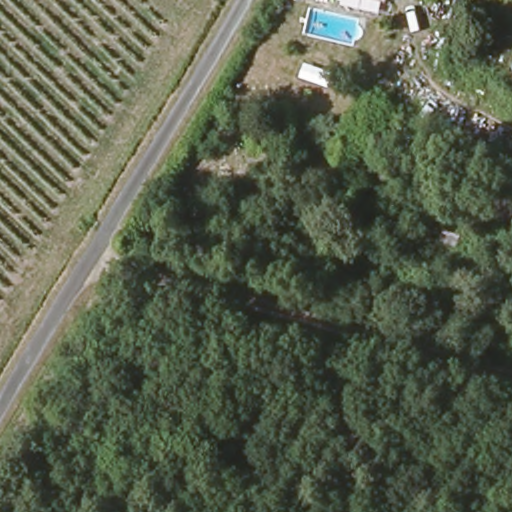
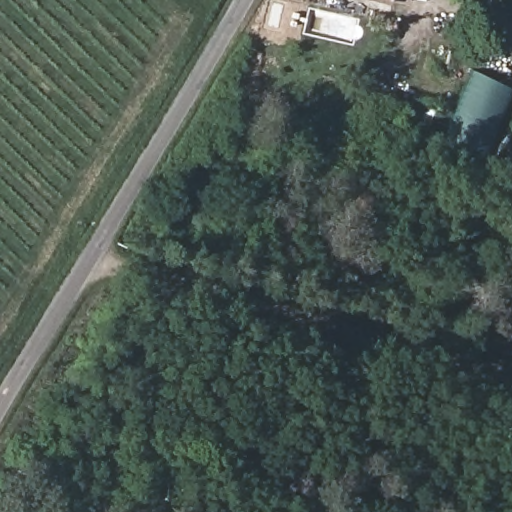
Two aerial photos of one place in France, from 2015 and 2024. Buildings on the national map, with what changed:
unchanged [(390,0),(388,4),(372,0),(390,0)]
new [(445,136),(474,71),(511,88),(481,153),(445,136)]

